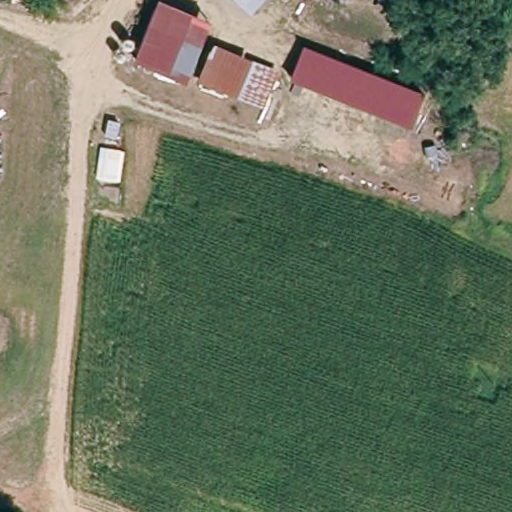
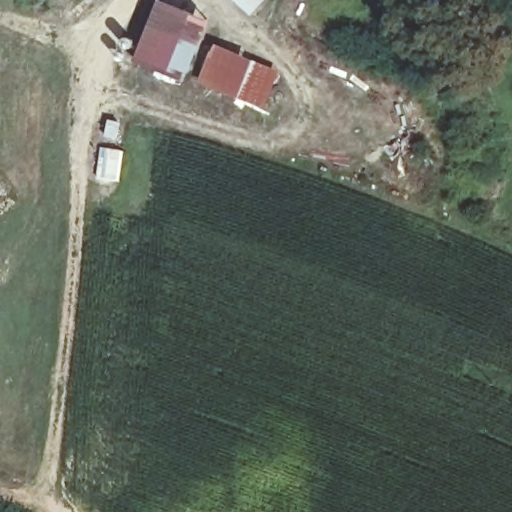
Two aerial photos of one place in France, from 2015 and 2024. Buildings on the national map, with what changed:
unchanged [(261,0),(252,14),(240,0),(261,0)]
unchanged [(162,1),(213,20),(187,79),(138,61),(162,1)]
unchanged [(194,83),(208,43),(276,70),(274,76),(292,85),(280,114),(194,83)]
demolished [(305,46),(426,91),(414,124),(293,77),(305,46)]

